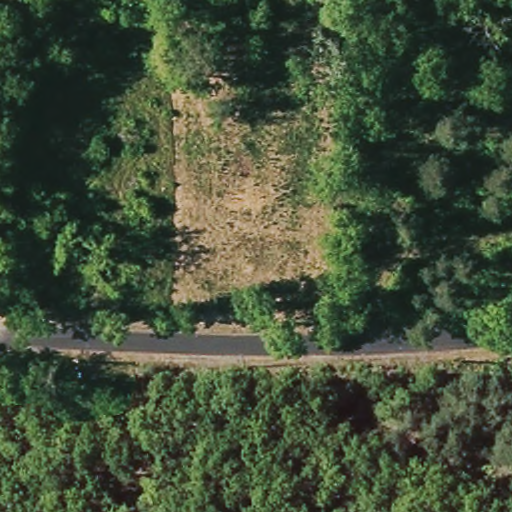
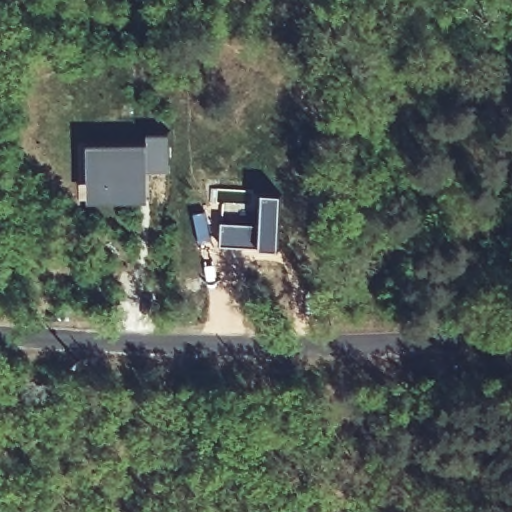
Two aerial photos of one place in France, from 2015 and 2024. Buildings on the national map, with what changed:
new [(147,134),(171,134),(171,174),(150,174),(150,204),(87,205),(86,145),(147,144),(147,134)]
new [(260,221),(262,193),(282,195),(279,252),(260,250),(260,221)]
new [(220,220),(260,221),(260,250),(219,247),(220,220)]

